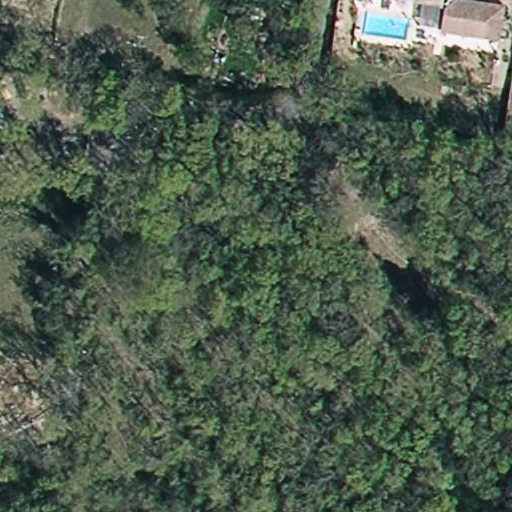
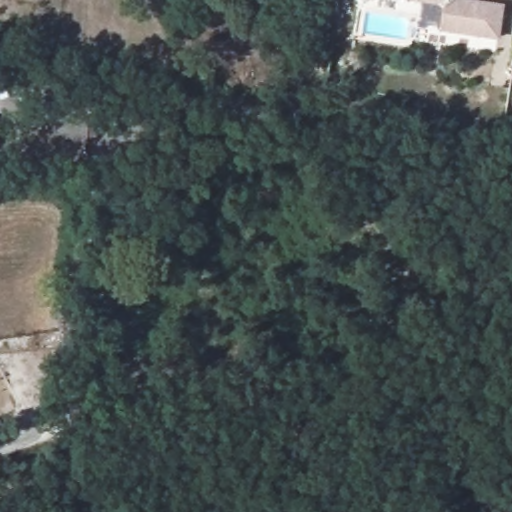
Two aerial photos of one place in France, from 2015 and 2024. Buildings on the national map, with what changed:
unchanged [(441,30),(444,12),(418,7),(419,1),(416,0),(463,0),(499,7),(494,39),(441,30)]
unchanged [(0,134),(0,123),(5,126),(0,134)]

